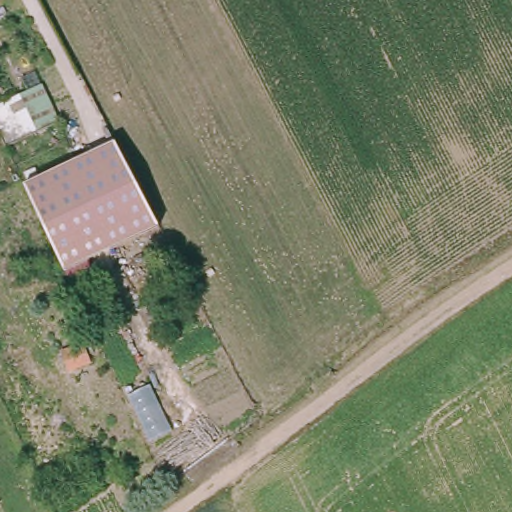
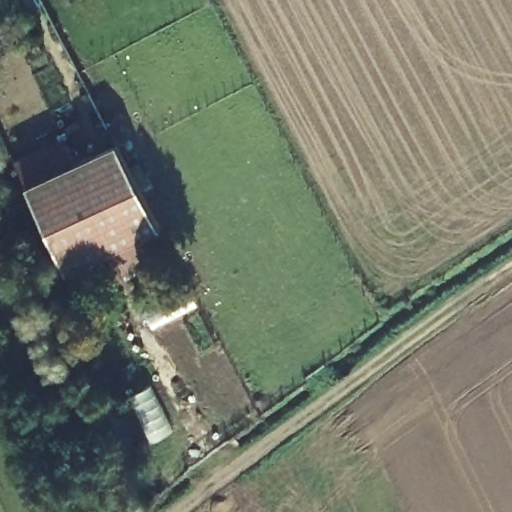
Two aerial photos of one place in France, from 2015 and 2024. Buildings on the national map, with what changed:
unchanged [(61,121),(11,145),(0,122),(0,106),(43,83),(61,121)]
unchanged [(161,229),(65,273),(24,186),(116,142),(161,229)]

